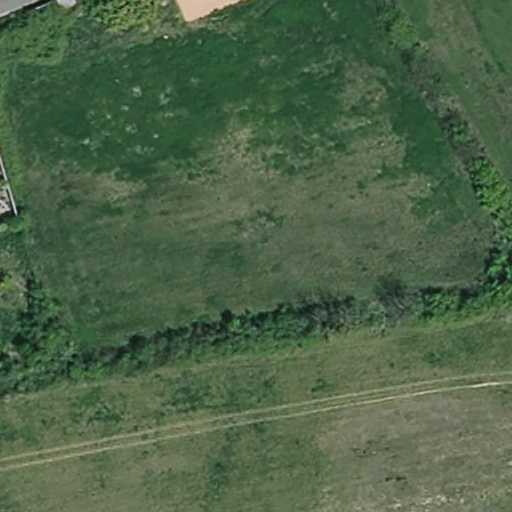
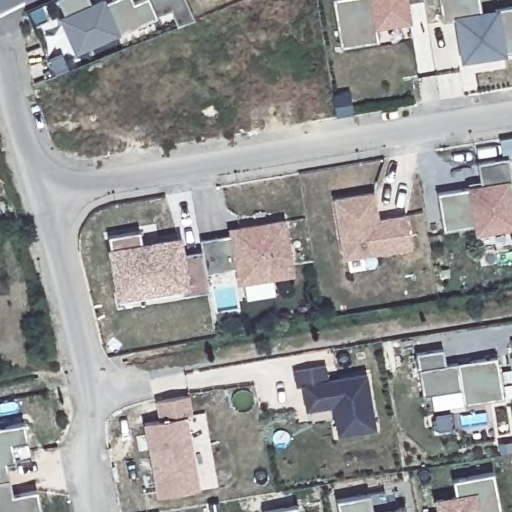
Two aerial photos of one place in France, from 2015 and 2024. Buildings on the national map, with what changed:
demolished [(60,10),(56,0),(82,0),(60,10)]
new [(90,3),(97,0),(105,0),(106,2),(110,0),(132,0),(133,2),(139,0),(185,0),(195,19),(179,26),(170,8),(155,15),(118,31),(120,33),(75,53),(58,18),(65,14),(57,0),(88,0),(90,3)]
new [(406,1),(409,17),(374,22),(377,42),(340,48),(332,0),(413,0),(406,1)]
new [(457,18),(443,21),(439,0),(480,0),(482,13),(495,11),(495,8),(512,5),(512,50),(503,52),(471,57),(465,59),(463,51),(457,18)]
new [(466,188),(466,186),(481,183),(477,163),(510,157),(512,172),(512,182),(510,182),(512,194),(512,228),(475,235),(472,225),(443,230),(437,193),(466,188)]
new [(375,191),(380,217),(405,213),(411,248),(343,259),(333,198),(375,191)]
new [(231,229),(240,228),(284,220),(293,274),(240,284),(237,269),(205,274),(200,239),(232,234),(231,229)]
new [(117,289),(108,236),(140,230),(143,245),(155,243),(179,239),(182,254),(201,251),(208,291),(189,294),(120,306),(117,289)]
new [(445,349),(447,364),(499,356),(506,398),(465,405),(462,389),(424,396),(417,353),(445,349)]
new [(326,364),(328,379),(366,373),(375,428),(338,435),(333,404),(306,409),(302,384),(297,385),(294,369),(326,364)]
new [(143,422),(158,419),(155,400),(188,394),(192,414),(186,415),(199,489),(156,496),(143,422)]
new [(24,421),(27,440),(31,458),(15,461),(20,493),(37,490),(42,512),(0,512),(0,426),(24,421)]
new [(456,497),(452,481),(494,473),(502,512),(438,512),(436,501),(456,497)]
new [(370,494),(373,512),(339,512),(336,500),(370,494)]
new [(298,512),(265,512),(297,506),(298,512)]
new [(407,512),(384,512),(406,508),(407,512)]

